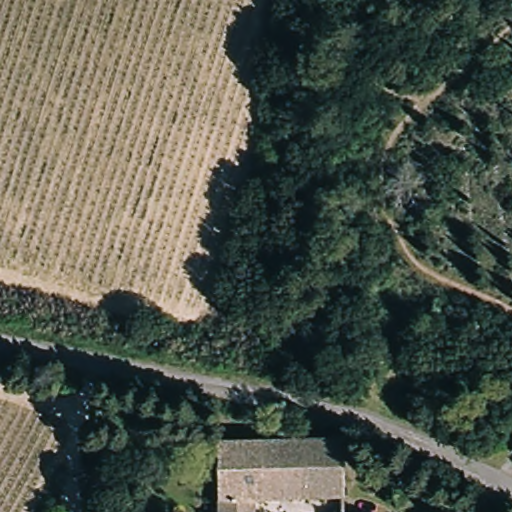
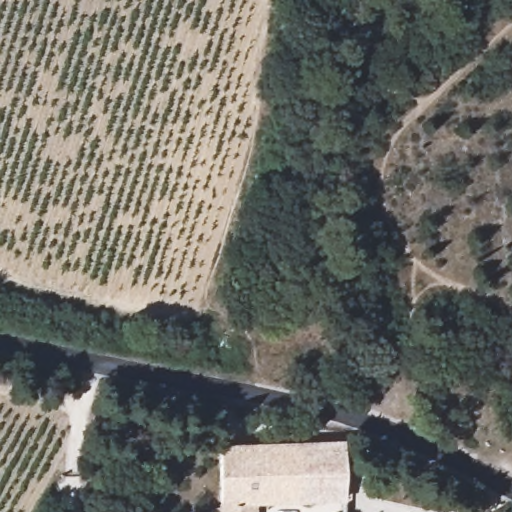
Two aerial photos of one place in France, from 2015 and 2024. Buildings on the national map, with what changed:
unchanged [(342,441),(345,499),(253,502),(254,512),(220,512),(219,445),(342,441)]

